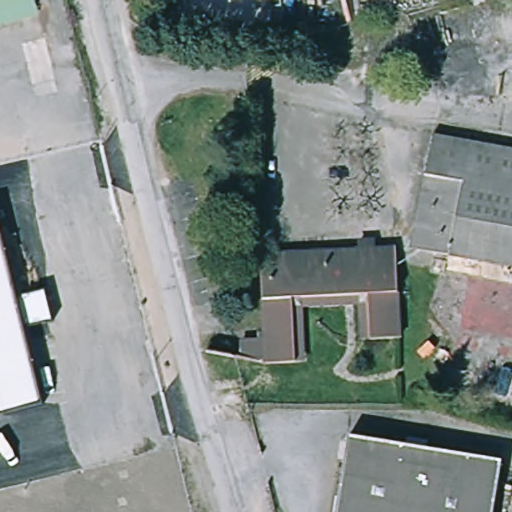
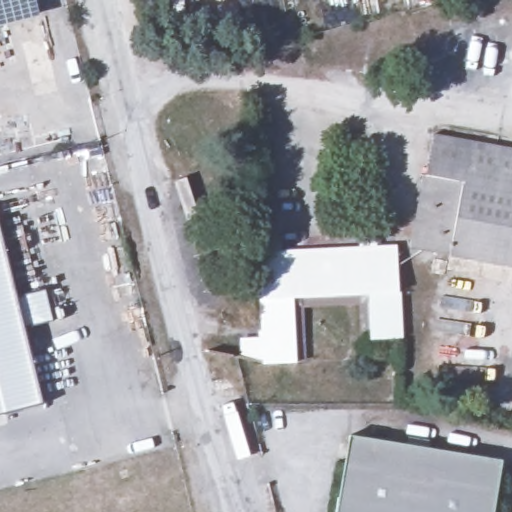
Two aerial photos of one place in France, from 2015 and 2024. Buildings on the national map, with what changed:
unchanged [(0,0),(31,0),(34,13),(0,20),(0,0)]
unchanged [(433,130),(502,142),(495,180),(426,167),(433,130)]
unchanged [(495,180),(502,142),(512,144),(512,262),(412,244),(426,167),(495,180)]
unchanged [(295,353),(264,353),(262,245),(403,244),(404,338),(373,338),(371,291),(294,291),(295,353)]
unchanged [(41,291),(48,320),(19,327),(36,405),(0,414),(0,245),(12,296),(41,291)]
unchanged [(351,433),(502,458),(493,512),(337,512),(351,433)]

